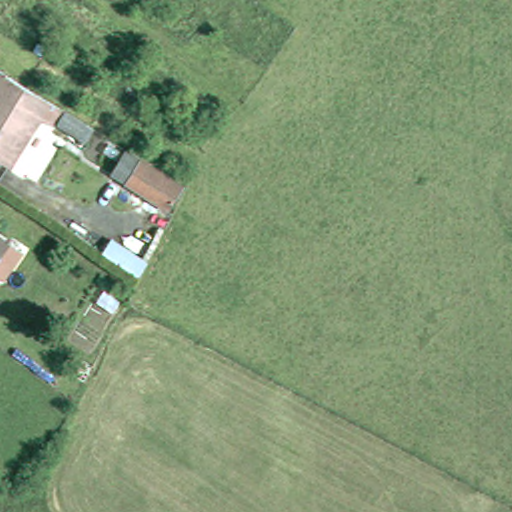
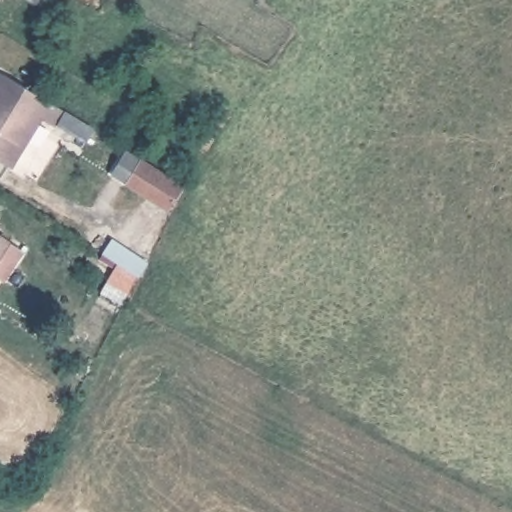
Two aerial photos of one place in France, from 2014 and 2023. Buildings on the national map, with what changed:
unchanged [(44,120),(29,146),(25,144),(18,155),(21,157),(14,170),(0,161),(0,94),(8,80),(28,91),(65,114),(56,129),(44,120)]
unchanged [(129,181),(144,156),(173,173),(188,181),(173,208),(129,181)]
unchanged [(0,269),(0,229),(19,241),(0,269)]

